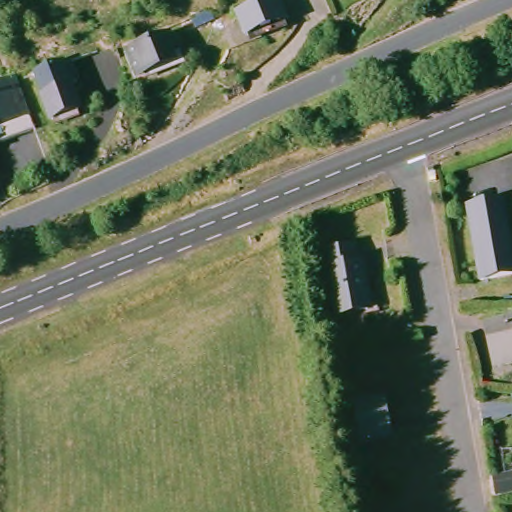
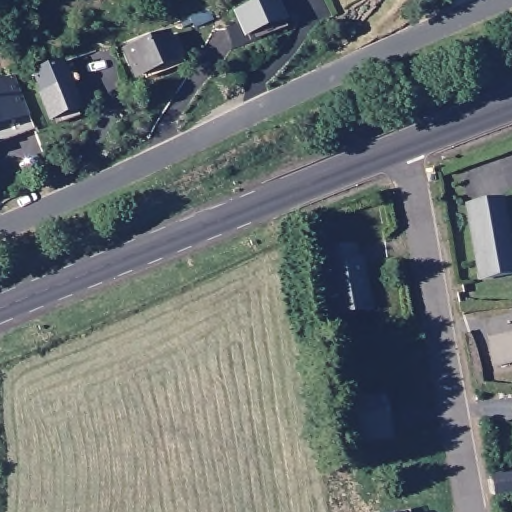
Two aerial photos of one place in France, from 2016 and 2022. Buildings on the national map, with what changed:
unchanged [(271,5),(280,28),(245,39),(236,16),(271,5)]
unchanged [(171,54),(165,56),(167,67),(135,79),(125,54),(165,39),(171,54)]
unchanged [(32,130),(0,143),(0,81),(10,77),(32,130)]
unchanged [(30,93),(64,80),(71,101),(65,104),(75,130),(48,140),(30,93)]
unchanged [(461,215),(496,208),(510,282),(475,288),(461,215)]
unchanged [(354,275),(361,273),(366,301),(361,302),(365,322),(360,323),(330,328),(318,263),(350,257),(354,275)]
unchanged [(488,367),(481,332),(490,330),(512,326),(512,362),(503,364),(488,367)]
unchanged [(358,443),(350,403),(361,400),(362,408),(379,405),(380,413),(385,438),(358,443)]
unchanged [(512,487),(512,504),(495,507),(492,489),(512,487)]

